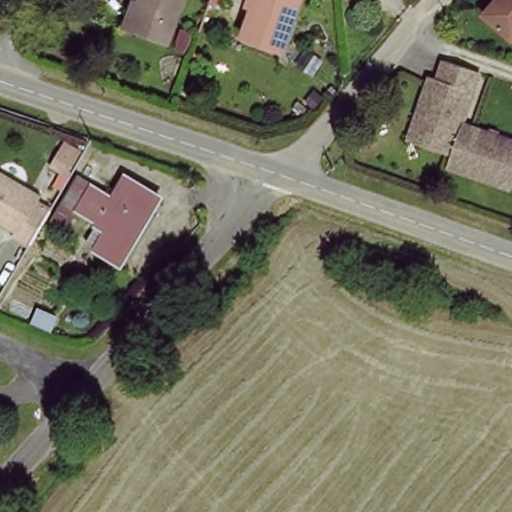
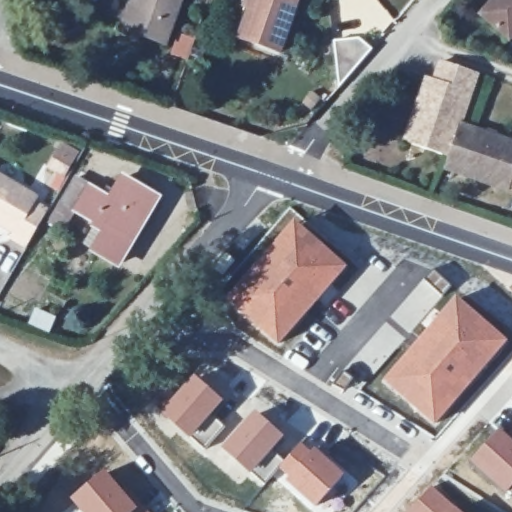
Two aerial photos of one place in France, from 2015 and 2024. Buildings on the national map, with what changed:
unchanged [(138,7),(140,0),(189,0),(171,48),(144,39),(128,34),(138,7)]
unchanged [(281,59),(240,45),(250,15),(245,13),(249,0),(301,0),(281,59)]
unchanged [(500,0),(512,0),(512,44),(509,47),(481,23),(500,0)]
unchanged [(480,178),(447,167),(450,158),(451,156),(417,144),(409,141),(420,109),(432,77),(439,80),(446,61),(481,73),(462,124),(512,142),(512,189),(480,178)]
unchanged [(36,205),(50,214),(26,253),(10,244),(16,234),(0,224),(0,173),(40,196),(36,205)]
unchanged [(90,186),(118,202),(131,182),(163,200),(136,241),(105,224),(102,231),(100,230),(73,214),(90,186)]
new [(294,219),(348,266),(276,346),(223,299),(294,219)]
unchanged [(102,231),(105,224),(136,241),(120,271),(90,252),(102,231)]
new [(431,319),(429,316),(433,310),(439,315),(456,296),(510,341),(434,427),(380,381),(431,319)]
new [(193,374),(223,401),(211,414),(225,427),(205,450),(159,414),(193,374)]
new [(256,412),(285,436),(273,450),(284,460),(278,467),(263,484),(221,450),(256,412)]
new [(499,427),(508,435),(512,439),(512,485),(503,495),(469,464),(499,427)]
new [(512,431),(512,439),(508,435),(512,431)]
new [(284,460),(301,439),(346,474),(315,508),(282,480),(286,475),(278,467),(284,460)]
new [(141,507),(143,506),(149,512),(79,512),(69,499),(103,468),(141,507)]
new [(462,512),(403,512),(429,483),(462,512)]

